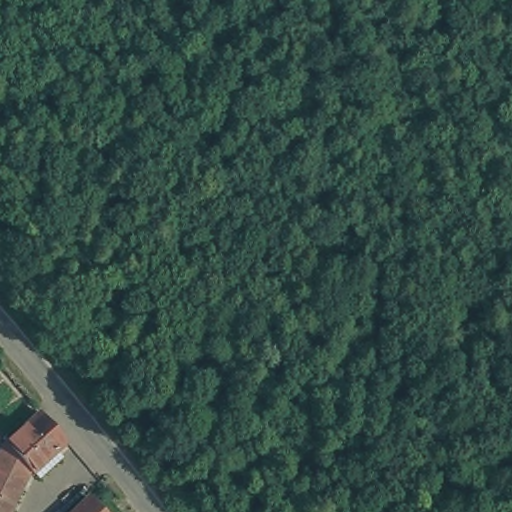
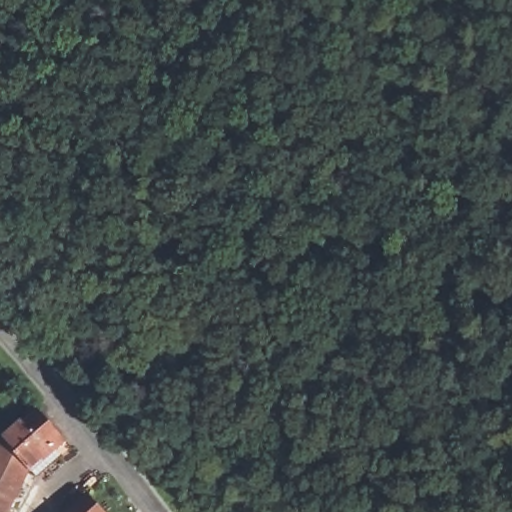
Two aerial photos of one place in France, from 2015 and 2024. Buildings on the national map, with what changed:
unchanged [(45,409),(72,441),(39,471),(36,468),(29,482),(20,499),(14,512),(0,512),(0,465),(13,441),(45,409)]
unchanged [(108,512),(75,512),(94,495),(108,512)]

